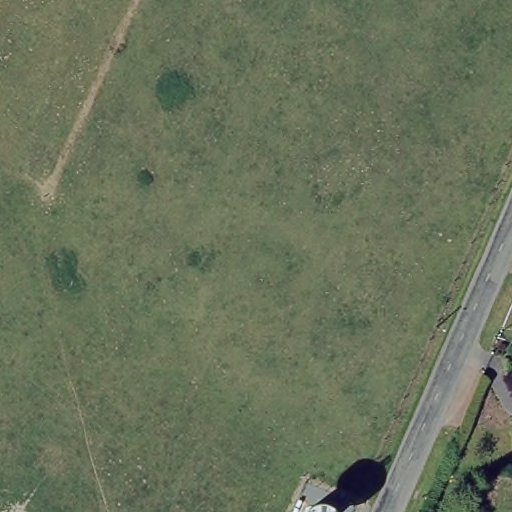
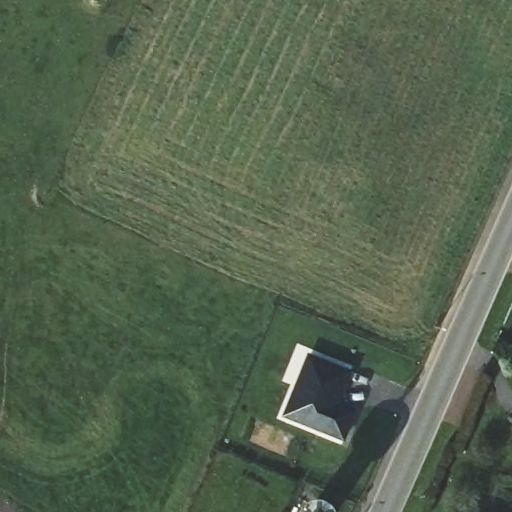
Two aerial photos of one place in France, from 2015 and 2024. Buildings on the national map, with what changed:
new [(282,416),(308,352),(353,370),(340,399),(358,406),(344,440),(282,416)]

